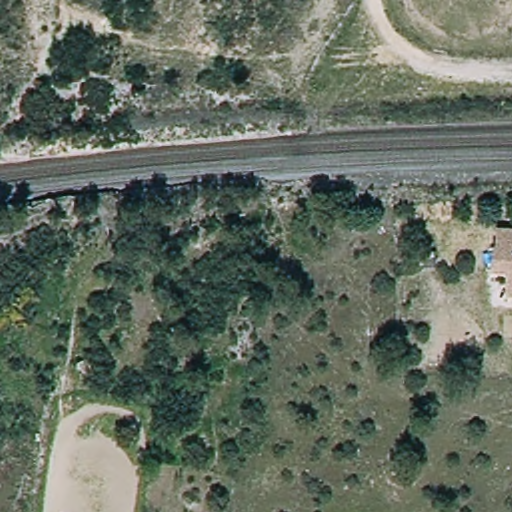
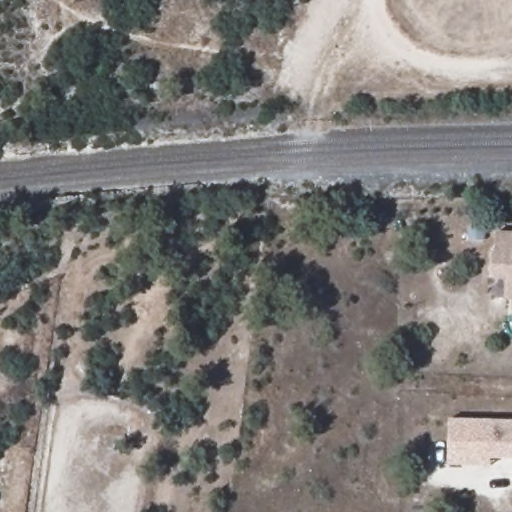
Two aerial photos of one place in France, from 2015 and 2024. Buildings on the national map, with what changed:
unchanged [(509,300),(509,280),(495,278),(495,252),(498,252),(499,231),(512,231),(512,300),(509,300)]
new [(450,417),(512,417),(512,454),(491,454),(491,463),(449,462),(449,447),(450,417)]

